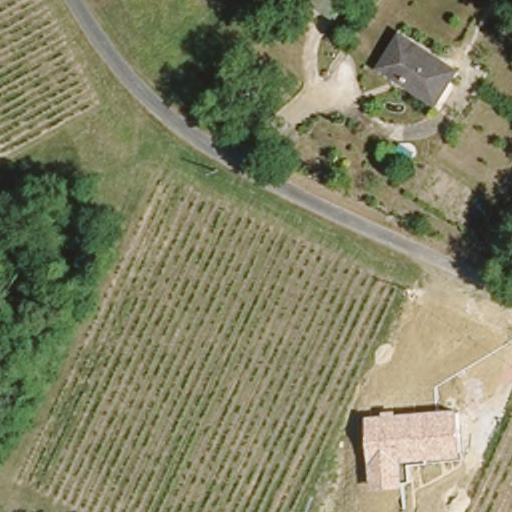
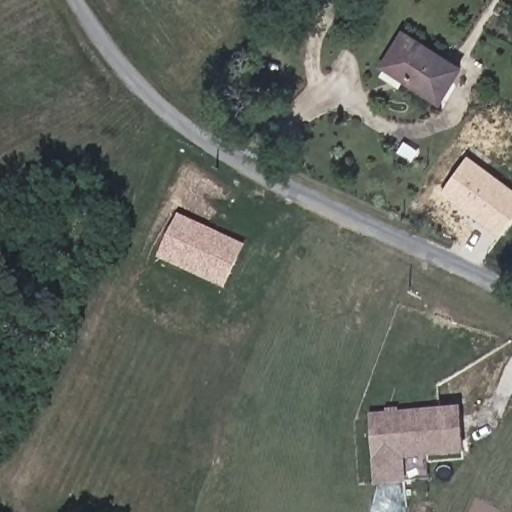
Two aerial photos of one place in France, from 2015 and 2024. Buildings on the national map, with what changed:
unchanged [(438,103),(381,62),(408,24),(468,64),(438,103)]
new [(467,155),(512,187),(512,223),(502,237),(441,192),(467,155)]
new [(247,245),(226,290),(158,258),(178,213),(247,245)]
unchanged [(466,455),(408,459),(409,484),(377,486),(372,417),(390,415),(390,410),(402,409),(403,413),(463,409),(466,455)]

